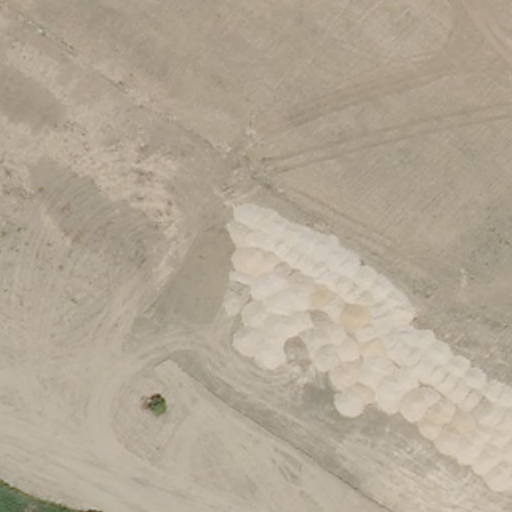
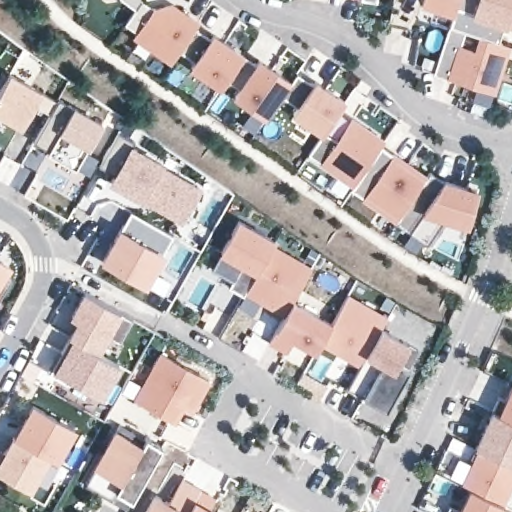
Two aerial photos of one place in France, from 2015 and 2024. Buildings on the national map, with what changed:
new [(136,7),(136,9),(124,0),(142,0),(136,7)]
new [(154,6),(171,3),(199,20),(195,26),(209,36),(213,32),(256,61),(259,57),(292,79),(282,96),(266,119),(233,97),(239,86),(227,80),(222,89),(189,69),(194,60),(178,50),(171,62),(132,38),(137,31),(125,22),(136,7),(142,0),(143,0),(154,6)]
new [(420,0),(457,0),(454,12),(420,1),(420,0)]
new [(503,24),(499,42),(480,35),(465,30),(450,25),(457,0),(512,0),(512,27),(503,24)]
new [(450,25),(465,30),(480,35),(499,42),(509,45),(493,91),(433,70),(450,25)]
new [(0,114),(0,87),(8,71),(57,97),(50,111),(33,103),(18,125),(0,114)]
new [(314,84),(316,81),(345,101),(324,131),(323,134),(293,112),(297,107),(282,96),(292,79),(298,72),(314,84)]
new [(47,152),(48,148),(34,140),(50,111),(57,97),(102,121),(87,145),(73,166),(47,152)]
new [(385,140),(353,186),(307,155),(323,134),(324,131),(337,140),(353,117),(385,140)]
new [(118,131),(134,140),(131,146),(161,163),(159,166),(199,189),(181,220),(111,180),(115,174),(99,165),(118,131)]
new [(427,177),(400,216),(396,221),(353,186),(380,146),(427,177)]
new [(443,182),(445,178),(477,190),(466,230),(447,224),(431,246),(396,221),(400,216),(430,173),(443,182)]
new [(173,234),(145,283),(103,260),(131,210),(173,234)]
new [(221,252),(219,251),(237,219),(275,239),(258,270),(244,295),(227,288),(233,279),(212,267),(221,252)]
new [(284,315),(246,291),(258,270),(274,241),(311,264),(292,301),(284,315)]
new [(8,258),(6,262),(9,264),(4,272),(10,276),(0,292),(0,252),(8,258)]
new [(387,315),(380,326),(360,363),(322,341),(331,324),(348,291),(387,315)]
new [(78,323),(70,320),(86,292),(120,311),(98,352),(70,336),(78,323)]
new [(292,301),(331,324),(316,351),(294,338),(286,351),(269,341),(292,301)]
new [(134,319),(120,342),(107,335),(120,311),(134,319)]
new [(417,348),(387,408),(347,387),(380,326),(417,348)]
new [(119,363),(98,400),(50,373),(70,336),(119,363)]
new [(160,354),(208,381),(192,410),(183,405),(174,421),(135,400),(160,354)]
new [(489,410),(495,413),(512,378),(512,464),(474,445),(489,410)]
new [(78,428),(58,462),(48,455),(14,436),(32,404),(78,428)]
new [(101,491),(86,483),(120,424),(134,432),(129,441),(140,447),(144,440),(160,450),(132,500),(128,506),(101,491)]
new [(48,455),(29,487),(0,471),(0,451),(5,454),(14,436),(48,455)]
new [(512,464),(512,483),(503,501),(460,480),(475,445),(512,464)]
new [(170,502),(183,480),(201,490),(188,512),(146,512),(156,495),(170,502)]
new [(460,510),(470,488),(504,504),(500,512),(446,512),(449,505),(460,510)]
new [(201,490),(214,497),(207,505),(218,512),(188,512),(193,504),(201,490)]

